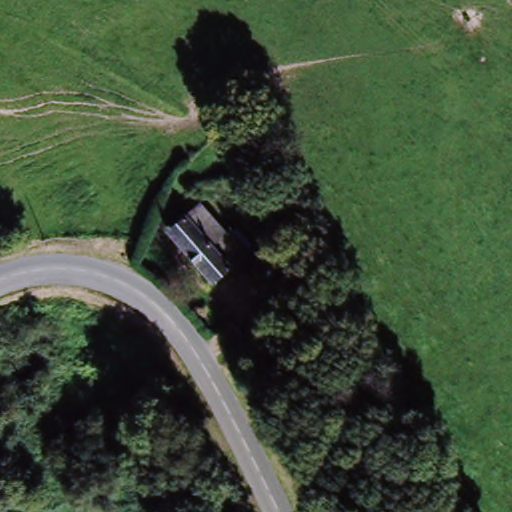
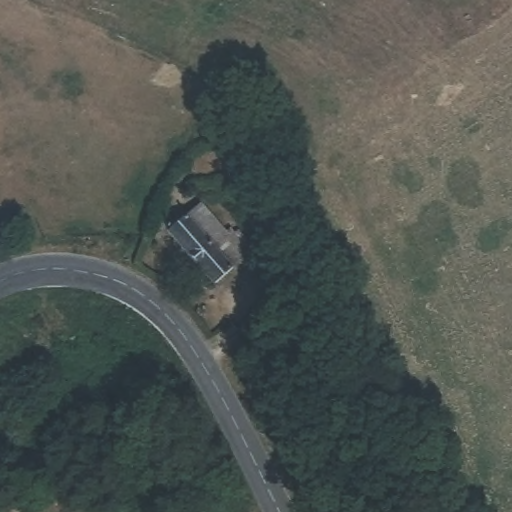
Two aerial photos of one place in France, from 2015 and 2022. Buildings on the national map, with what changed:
unchanged [(230,273),(193,216),(207,206),(229,238),(237,233),(254,258),(230,273)]
unchanged [(209,286),(170,230),(193,216),(230,273),(209,286)]

